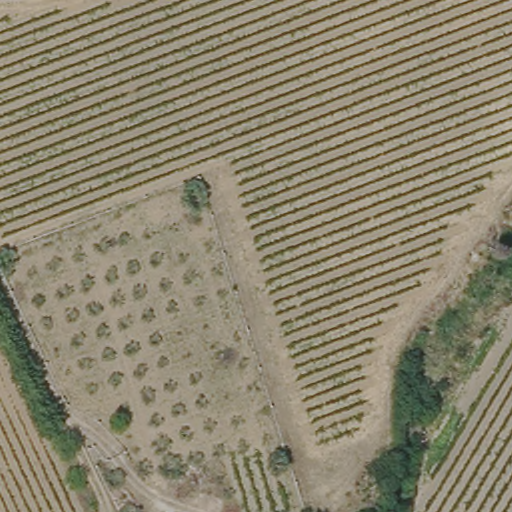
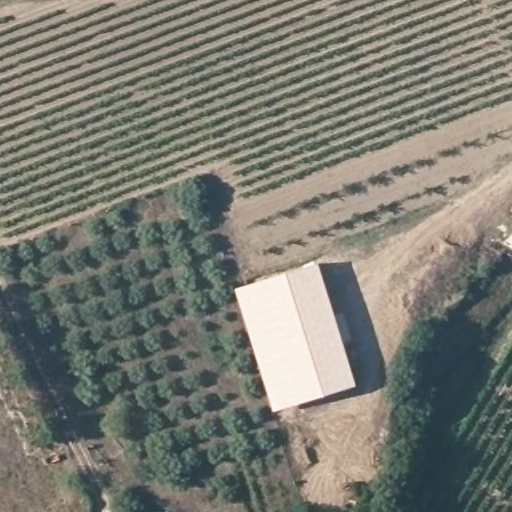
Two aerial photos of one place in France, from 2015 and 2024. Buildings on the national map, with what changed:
new [(512,208),(509,206),(512,201),(512,208)]
new [(318,261),(358,385),(274,411),(235,288),(318,261)]

